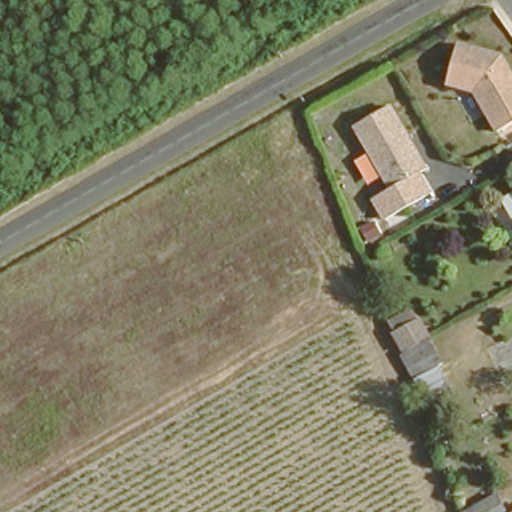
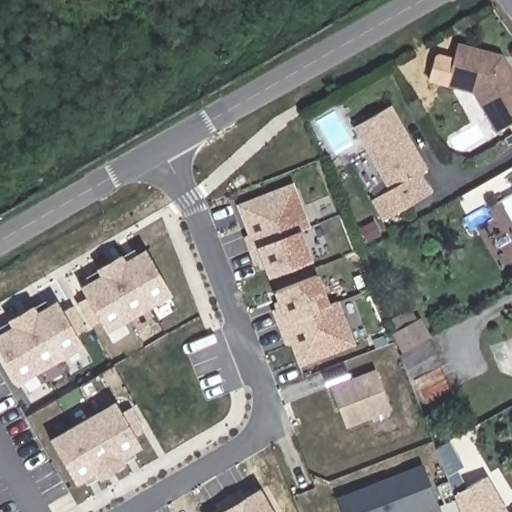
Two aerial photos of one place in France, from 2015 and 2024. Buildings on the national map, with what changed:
unchanged [(512,73),(512,121),(498,129),(476,89),(448,82),(458,43),(502,54),(512,73)]
unchanged [(431,168),(422,172),(435,196),(385,222),(372,199),(388,191),(353,128),(394,105),(431,168)]
new [(293,184),(309,229),(302,231),(313,262),(269,277),(265,266),(262,268),(260,261),(255,263),(244,236),(249,233),(239,204),(293,184)]
unchanged [(512,201),(511,198),(512,197),(512,201)]
unchanged [(512,230),(512,233),(511,230),(512,230)]
new [(82,286),(100,275),(98,270),(125,255),(127,261),(146,248),(174,296),(108,333),(82,286)]
new [(319,275),(333,312),(343,310),(356,346),(301,365),(294,341),(286,343),(272,308),(278,305),(277,301),(280,299),(278,292),(319,275)]
unchanged [(431,346),(450,380),(430,391),(403,341),(409,336),(400,318),(392,308),(413,295),(421,305),(432,325),(426,328),(434,344),(431,346)]
new [(16,326),(13,320),(38,306),(41,312),(60,301),(86,347),(20,384),(0,353),(0,337),(16,326)]
new [(392,411),(346,429),(330,386),(375,368),(392,411)]
new [(118,402),(144,449),(126,461),(129,468),(104,483),(99,475),(79,486),(50,440),(118,402)]
new [(423,512),(343,512),(337,496),(422,463),(438,506),(423,512)]
new [(247,489),(252,494),(262,487),(276,512),(219,512),(216,505),(247,489)]
unchanged [(499,512),(472,512),(494,501),(499,512)]

